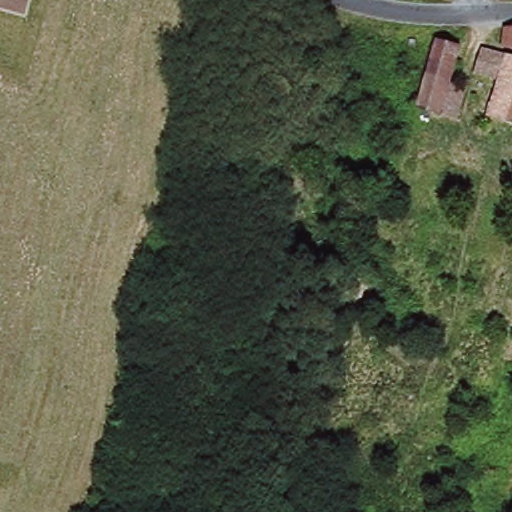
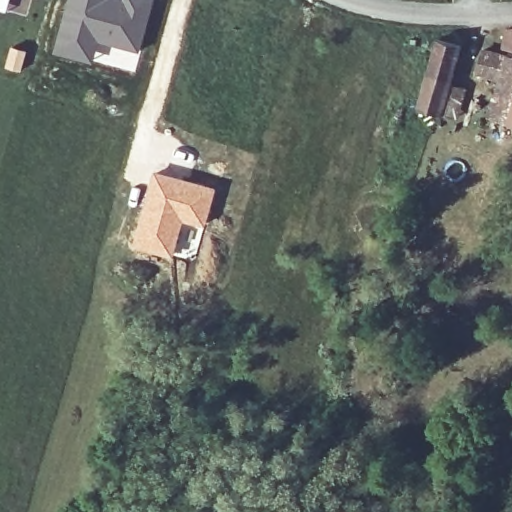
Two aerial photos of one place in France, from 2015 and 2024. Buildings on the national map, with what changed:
new [(92,66),(50,54),(66,0),(155,0),(139,55),(133,74),(93,63),(92,66)]
unchanged [(512,58),(503,55),(506,23),(512,23),(512,58)]
unchanged [(468,107),(464,122),(438,115),(415,108),(434,42),(458,48),(446,88),(461,92),(468,107)]
unchanged [(496,88),(472,81),(482,51),(512,61),(512,126),(487,119),(496,88)]
new [(153,170),(217,187),(205,228),(184,222),(173,257),(131,246),(153,170)]

